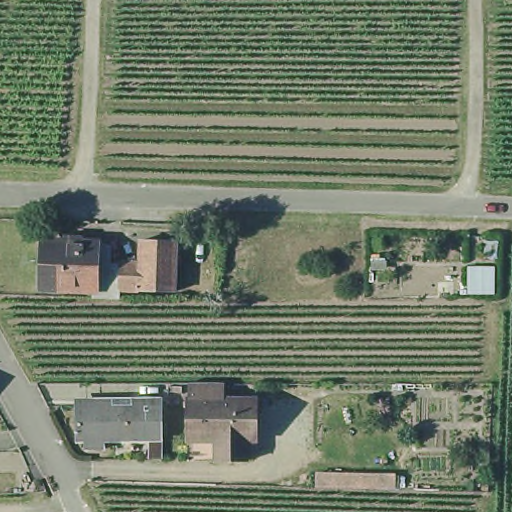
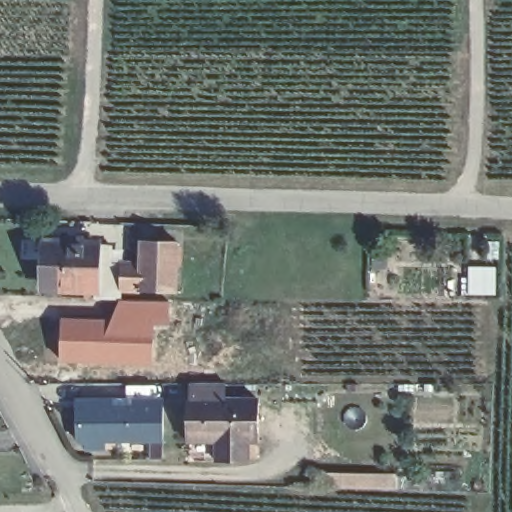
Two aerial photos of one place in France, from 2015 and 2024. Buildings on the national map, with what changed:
unchanged [(44,292),(46,245),(62,246),(63,239),(84,240),(84,247),(96,247),(96,248),(95,293),(44,292)]
unchanged [(141,244),(176,246),(174,291),(140,290),(140,288),(121,288),(120,302),(93,302),(93,293),(95,293),(96,248),(107,249),(107,266),(119,267),(141,268),(141,244)]
unchanged [(495,293),(468,294),(467,265),(492,264),(495,293)]
new [(106,319),(106,333),(120,301),(171,302),(170,324),(154,324),(152,366),(59,366),(61,318),(106,319)]
unchanged [(222,465),(211,465),(211,459),(195,459),(195,446),(192,446),(192,444),(193,403),(196,403),(196,386),(231,386),(231,403),(263,404),(262,447),(261,447),(261,462),(252,461),(252,465),(222,465)]
unchanged [(141,432),(85,432),(85,399),(91,399),(91,393),(118,393),(118,399),(140,399),(151,399),(167,399),(166,432),(141,432)]
unchanged [(110,441),(92,441),(92,434),(111,434),(110,441)]
unchanged [(312,488),(315,468),(400,469),(401,491),(312,488)]

